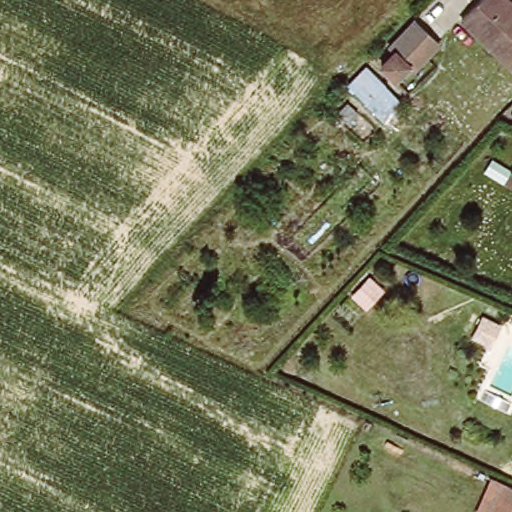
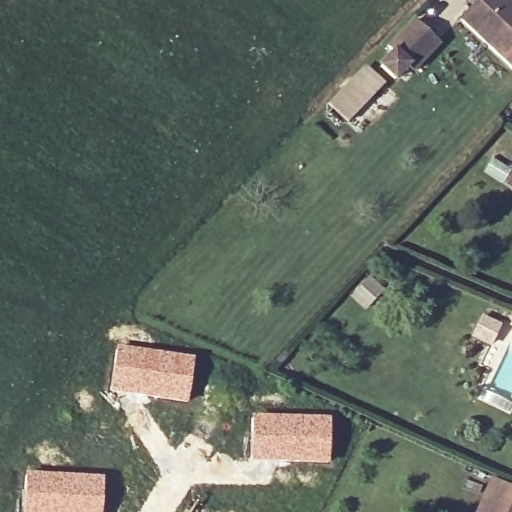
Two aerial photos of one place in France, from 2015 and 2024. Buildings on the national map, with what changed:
unchanged [(478,0),(505,0),(512,6),(512,70),(458,22),(478,0)]
unchanged [(389,59),(385,55),(410,26),(434,47),(408,76),(403,72),(390,86),(376,72),(389,59)]
unchanged [(395,108),(375,125),(360,111),(360,107),(345,91),(361,71),(395,108)]
new [(115,346),(195,358),(188,406),(108,393),(115,346)]
new [(250,415),(331,417),(330,466),(249,462),(250,415)]
new [(25,471),(105,477),(103,512),(22,512),(25,471)]
unchanged [(505,485),(512,488),(512,512),(493,512),(505,485)]

